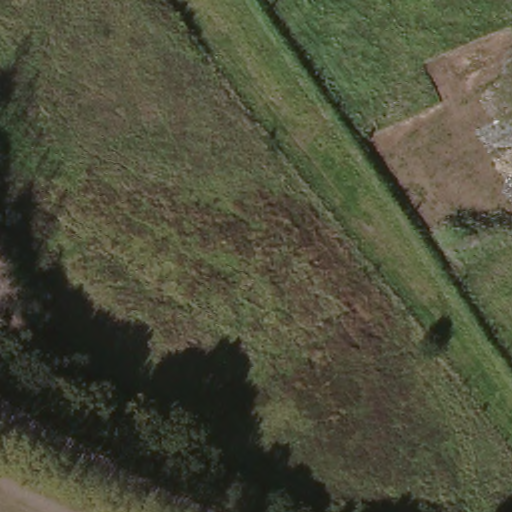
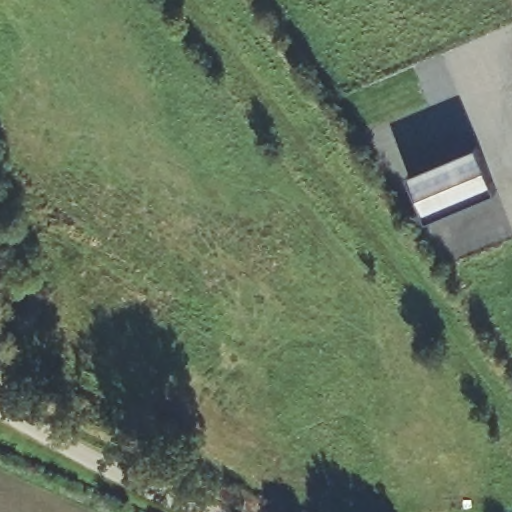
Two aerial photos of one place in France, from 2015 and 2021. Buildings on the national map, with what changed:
new [(427,216),(411,175),(477,146),(494,189),(427,216)]

